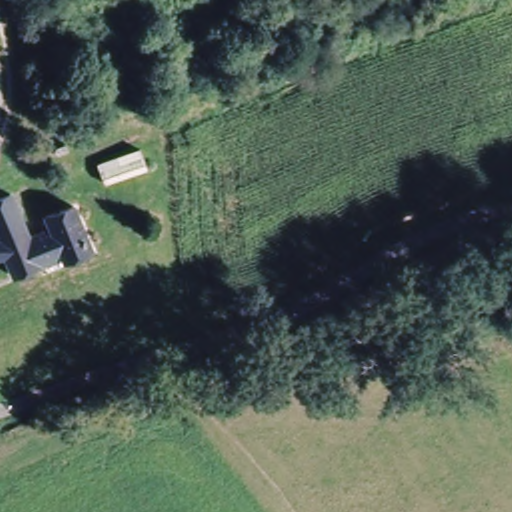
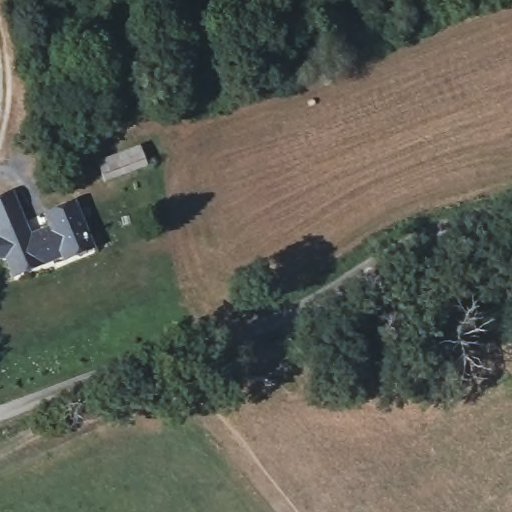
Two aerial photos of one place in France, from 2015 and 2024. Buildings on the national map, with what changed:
unchanged [(134,147),(144,171),(101,186),(92,162),(134,147)]
unchanged [(46,228),(43,216),(76,204),(95,251),(66,265),(61,258),(14,280),(6,261),(0,261),(0,197),(13,192),(31,234),(46,228)]

